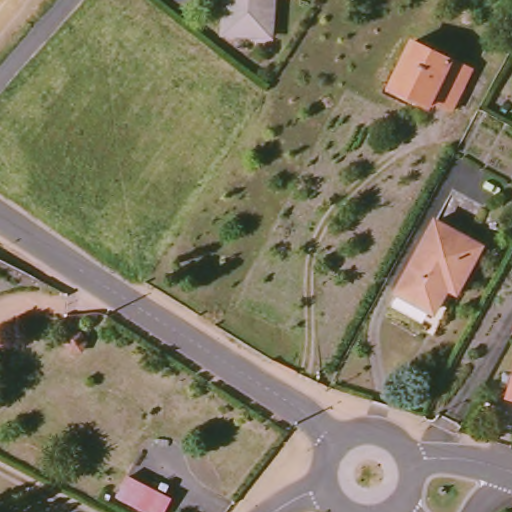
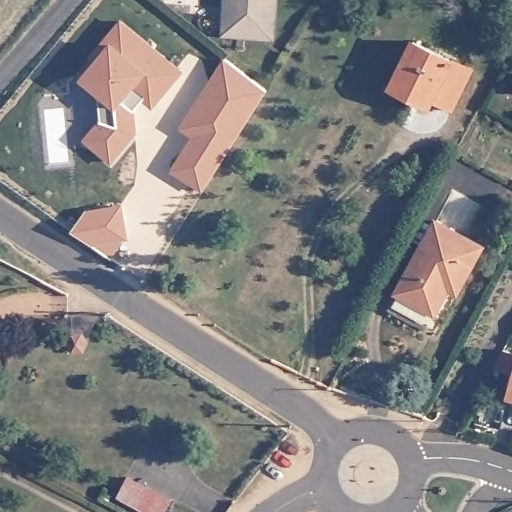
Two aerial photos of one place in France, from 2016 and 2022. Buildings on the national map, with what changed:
unchanged [(228,0),(275,0),(274,35),(235,34),(226,34),(228,13),(228,0)]
new [(181,72),(155,104),(141,92),(133,103),(135,133),(110,162),(84,140),(100,121),(97,91),(81,79),(110,44),(105,40),(121,21),(181,72)]
unchanged [(416,39),(474,70),(453,110),(433,100),(428,108),(389,87),(416,39)]
new [(170,173),(189,140),(178,130),(223,64),(264,94),(201,192),(170,173)]
new [(84,213),(120,206),(127,240),(122,240),(113,257),(90,244),(71,231),(84,213)]
unchanged [(487,246),(461,293),(447,285),(433,309),(399,290),(439,219),(487,246)]
unchanged [(507,397),(512,376),(512,398),(507,397)]
unchanged [(166,498),(159,512),(143,512),(110,495),(121,474),(166,498)]

